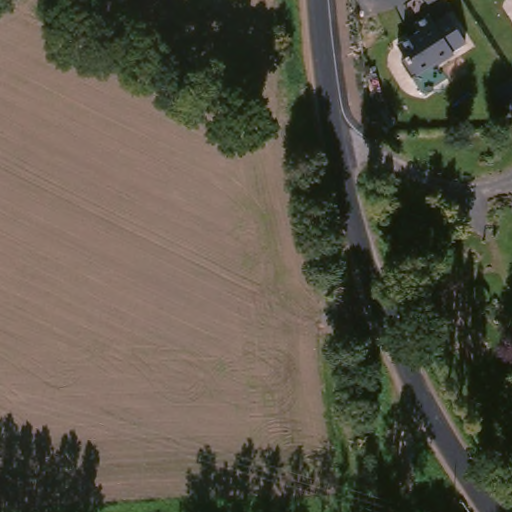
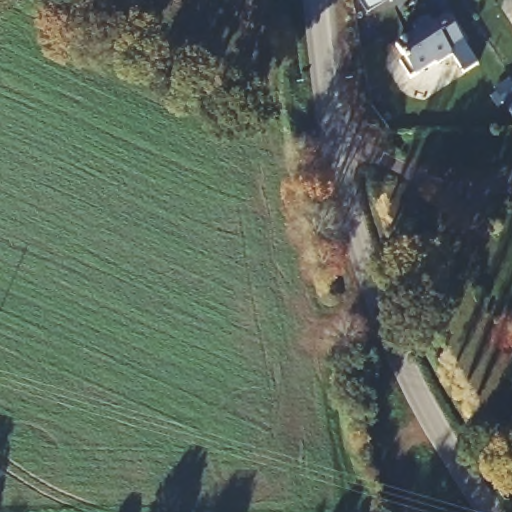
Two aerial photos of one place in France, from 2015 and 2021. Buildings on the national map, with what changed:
unchanged [(468,45),(413,79),(392,47),(449,15),(468,45)]
unchanged [(512,454),(512,471),(504,458),(512,454)]

